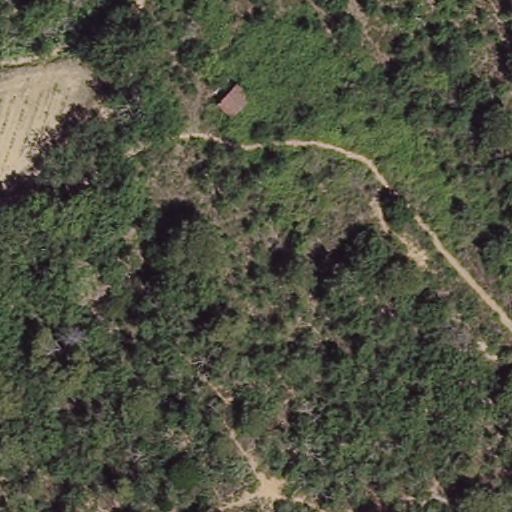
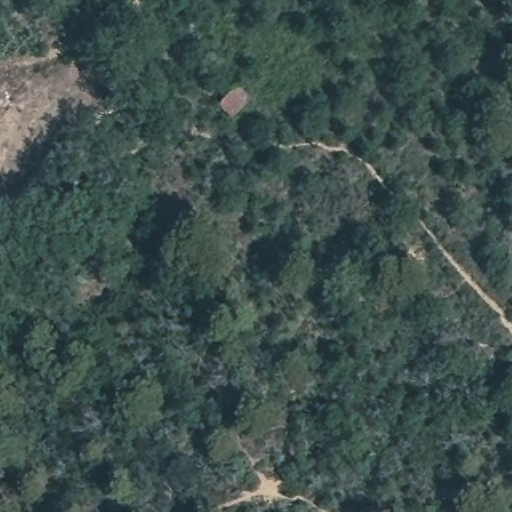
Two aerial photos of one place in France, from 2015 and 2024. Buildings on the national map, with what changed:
unchanged [(257,102),(238,119),(226,107),(245,88),(257,102)]

